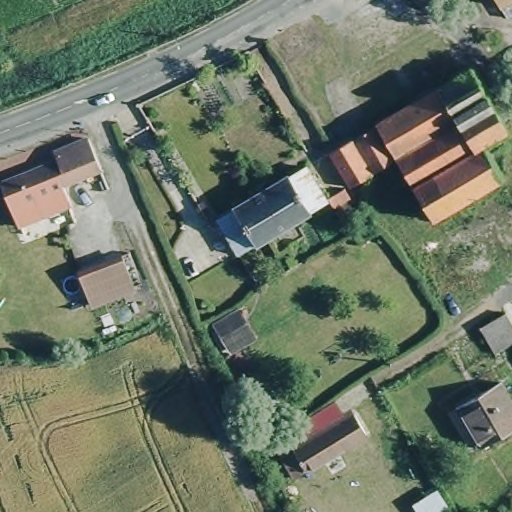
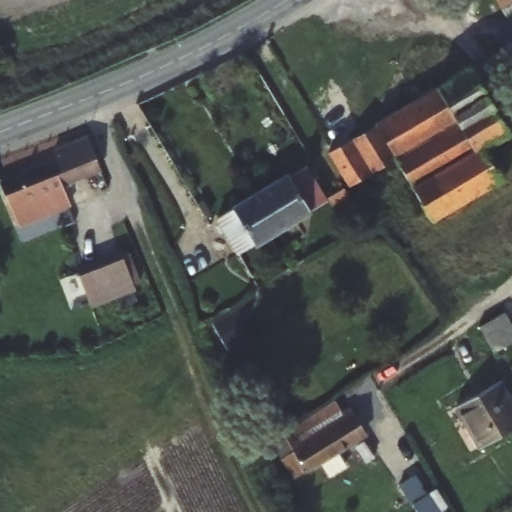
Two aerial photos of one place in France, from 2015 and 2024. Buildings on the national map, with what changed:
unchanged [(497,0),(512,0),(512,1),(502,7),(497,0)]
unchanged [(372,127),(462,72),(502,135),(477,150),(496,180),(429,221),(392,160),(372,127)]
unchanged [(350,141),(372,127),(392,160),(370,174),(350,141)]
unchanged [(58,185),(65,205),(13,225),(0,192),(0,181),(54,160),(50,152),(85,139),(97,170),(58,185)]
unchanged [(350,141),(370,174),(347,189),(327,155),(350,141)]
unchanged [(232,210),(230,206),(262,188),(287,174),(289,178),(302,170),(322,205),(292,223),(302,239),(277,252),(267,237),(235,255),(215,220),(232,210)]
unchanged [(345,235),(332,214),(342,208),(359,236),(340,247),(335,251),(330,245),(345,235)]
unchanged [(116,255),(127,285),(88,301),(76,270),(116,255)]
unchanged [(485,358),(469,332),(495,310),(512,339),(512,344),(485,358)]
unchanged [(512,402),(512,430),(480,450),(455,410),(499,381),(512,402)]
unchanged [(274,447),(290,437),(300,452),(353,418),(365,437),(294,480),(274,447)]

